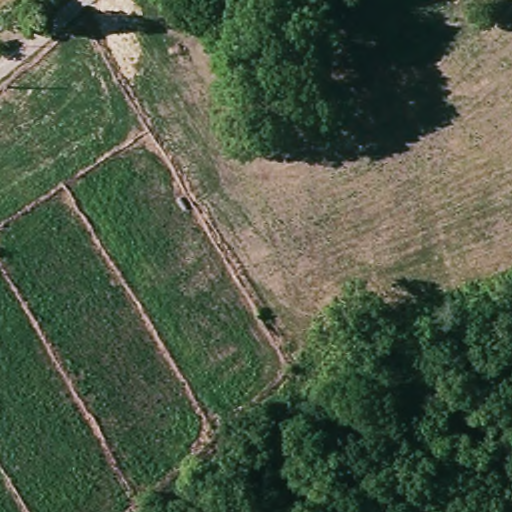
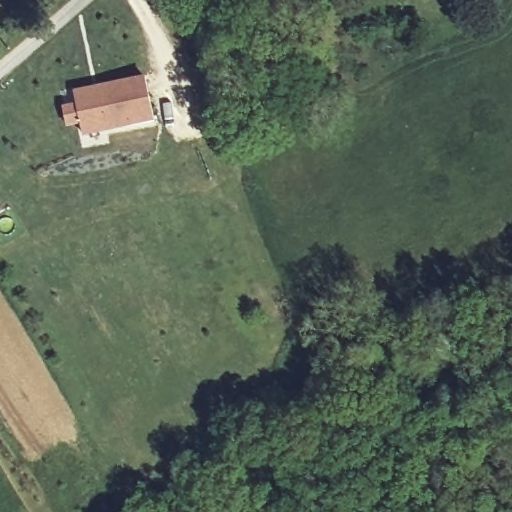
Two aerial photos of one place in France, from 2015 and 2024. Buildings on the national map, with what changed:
new [(70,94),(139,80),(149,123),(79,138),(77,125),(63,129),(59,110),(73,107),(70,94)]

